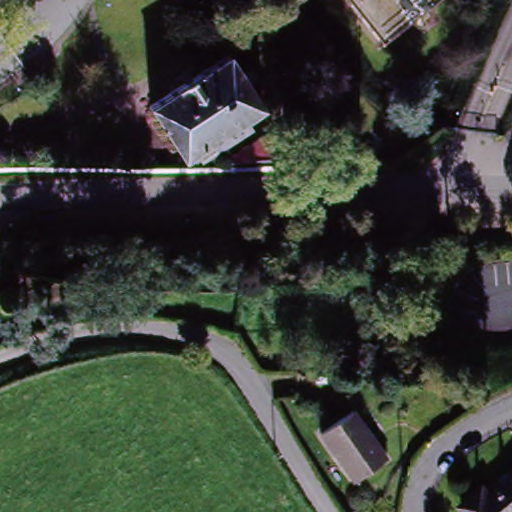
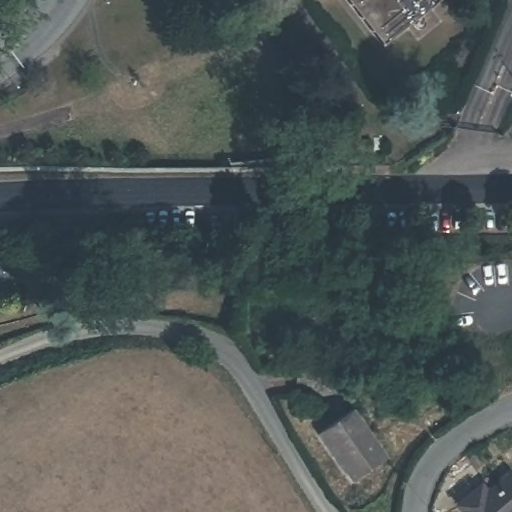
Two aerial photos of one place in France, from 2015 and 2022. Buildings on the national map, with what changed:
unchanged [(380,40),(346,0),(429,0),(415,11),(380,40)]
demolished [(224,44),(258,96),(241,107),(249,120),(199,151),(196,147),(191,150),(186,144),(179,149),(142,95),(224,44)]
demolished [(261,125),(276,147),(225,151),(222,147),(261,125)]
unchanged [(356,282),(383,280),(401,278),(403,298),(385,300),(358,302),(356,282)]
unchanged [(316,435),(349,412),(383,460),(351,485),(316,435)]
unchanged [(512,485),(512,512),(461,512),(456,506),(471,495),(480,488),(485,496),(507,479),(512,485)]

